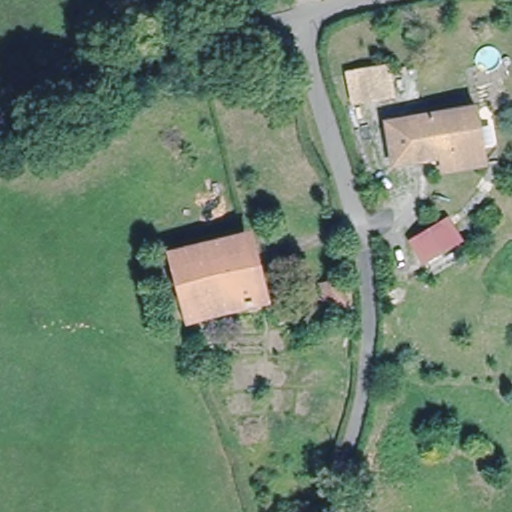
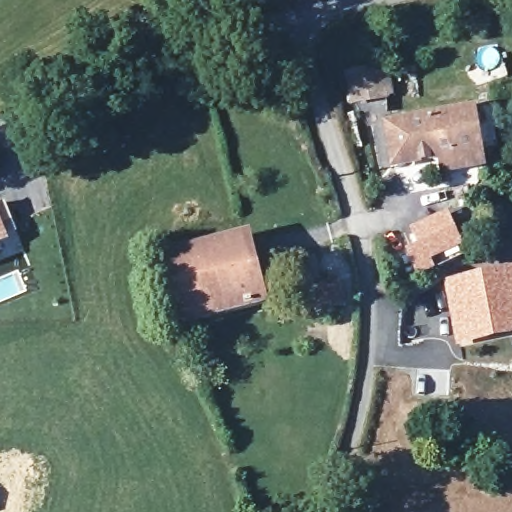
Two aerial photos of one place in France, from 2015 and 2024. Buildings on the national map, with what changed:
unchanged [(368,67),(373,99),(353,103),(346,71),(368,67)]
unchanged [(480,104),(491,167),(443,173),(440,158),(392,166),(385,121),(480,104)]
new [(17,232),(9,235),(11,240),(0,245),(0,204),(5,202),(17,232)]
unchanged [(452,218),(468,253),(433,275),(412,240),(452,218)]
unchanged [(263,305),(189,324),(166,257),(247,236),(263,305)]
new [(488,339),(460,345),(456,324),(453,308),(449,286),(512,275),(512,335),(488,339)]
unchanged [(343,308),(320,307),(320,285),(345,286),(343,308)]

